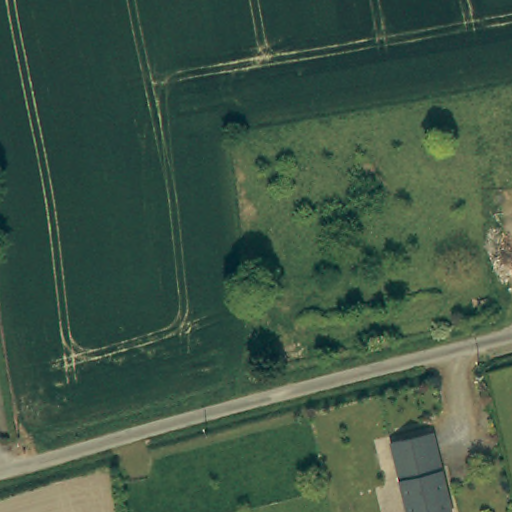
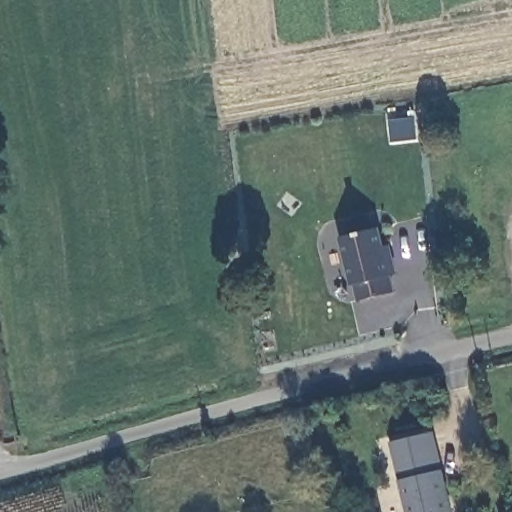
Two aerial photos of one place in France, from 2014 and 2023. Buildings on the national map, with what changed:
new [(378,227),(382,245),(390,243),(397,272),(390,273),(395,291),(358,300),(355,284),(350,285),(339,237),(378,227)]
unchanged [(395,440),(405,438),(436,433),(440,452),(454,512),(410,512),(395,440)]

